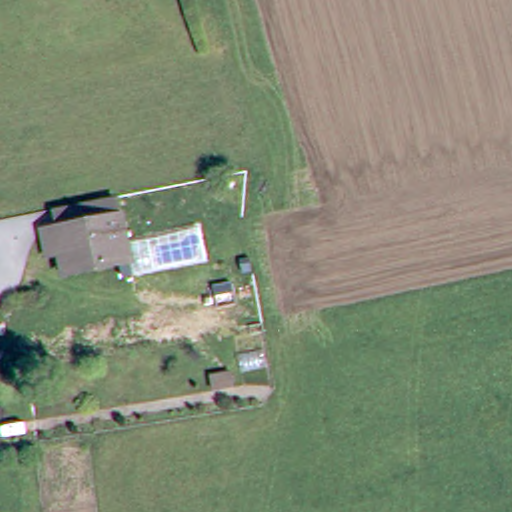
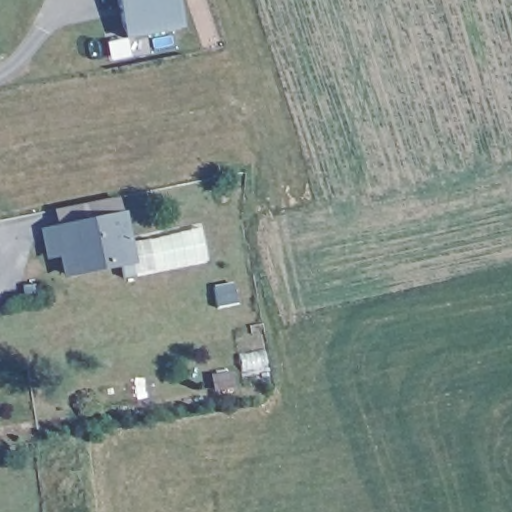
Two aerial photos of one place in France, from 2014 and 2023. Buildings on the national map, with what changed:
new [(125,40),(117,0),(178,0),(184,29),(125,40)]
unchanged [(140,273),(73,285),(70,264),(55,267),(52,243),(67,241),(64,220),(80,217),(113,211),(124,209),(127,230),(130,230),(140,273)]
unchanged [(219,389),(215,374),(235,371),(239,386),(219,389)]

